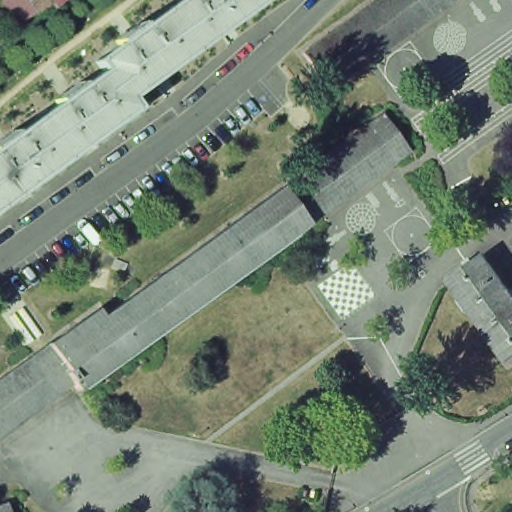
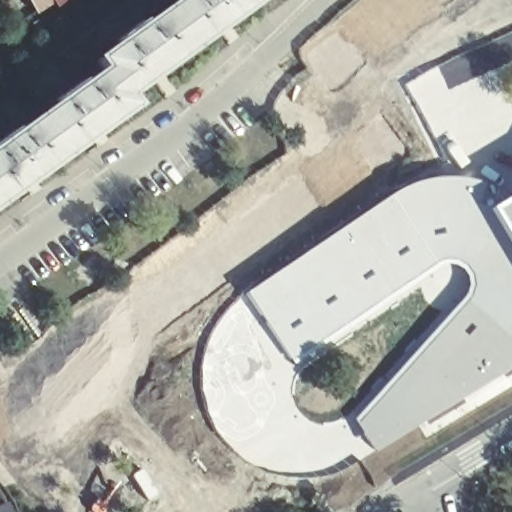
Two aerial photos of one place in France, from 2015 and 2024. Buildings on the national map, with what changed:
unchanged [(37,0),(47,0),(40,5),(37,0)]
unchanged [(232,17),(233,18),(223,25),(195,45),(168,9),(180,0),(257,0),(232,17)]
unchanged [(371,60),(335,87),(307,49),(343,22),(375,0),(454,0),(371,60)]
unchanged [(195,45),(166,66),(157,73),(156,73),(127,94),(108,67),(108,68),(100,58),(123,41),(120,38),(144,21),(146,25),(168,9),(195,45)]
unchanged [(108,67),(127,94),(135,104),(105,125),(105,126),(96,133),(96,132),(67,153),(41,117),(62,101),(60,97),(83,80),(85,84),(108,68),(108,67)]
unchanged [(49,344),(97,309),(103,316),(284,185),(297,175),(366,126),(382,114),(409,151),(393,163),(325,213),(308,225),(81,388),(77,390),(72,384),(57,395),(0,437),(0,379),(30,358),(49,344)]
unchanged [(38,174),(39,175),(30,181),(29,180),(0,201),(0,141),(16,129),(19,132),(41,117),(67,153),(38,174)]
new [(299,256),(397,190),(425,180),(455,178),(483,186),(503,199),(486,210),(512,251),(512,368),(505,373),(375,452),(357,425),(465,301),(470,292),(472,284),(470,274),(463,267),(455,262),(446,263),(438,265),(291,362),(246,291),(299,256)]
new [(486,210),(503,199),(512,193),(512,251),(486,210)]
demolished [(485,256),(512,293),(512,362),(509,365),(449,282),(467,269),(463,264),(470,259),(474,265),(485,256)]
unchanged [(10,512),(0,512),(0,503),(6,501),(10,512)]

